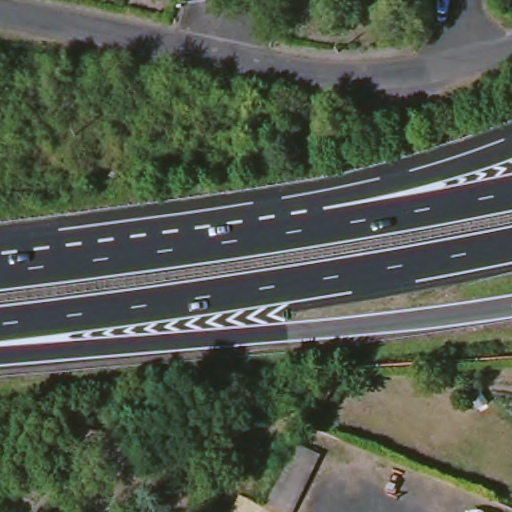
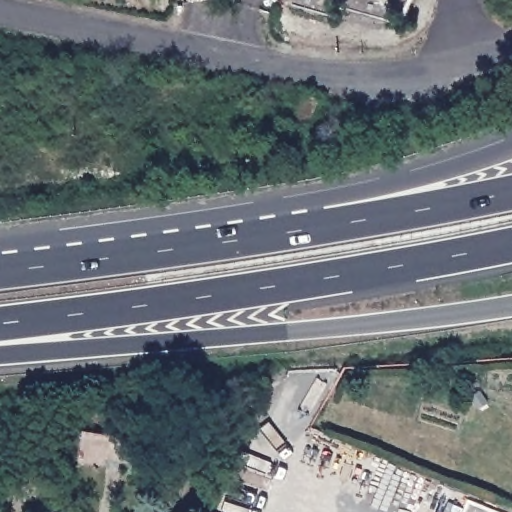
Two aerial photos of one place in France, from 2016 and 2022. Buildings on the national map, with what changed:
unchanged [(264,503),(295,445),(316,452),(288,512),(212,512),(222,490),(264,503)]

